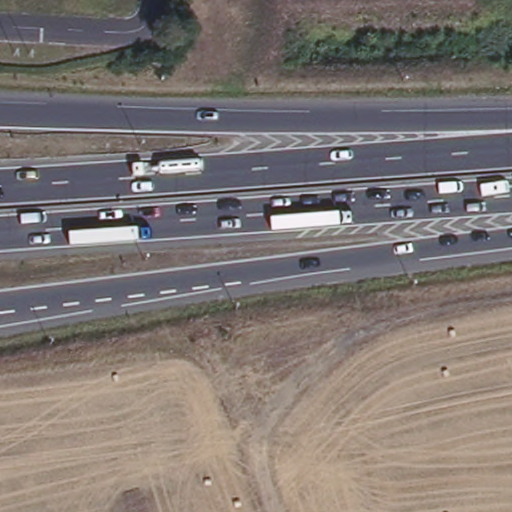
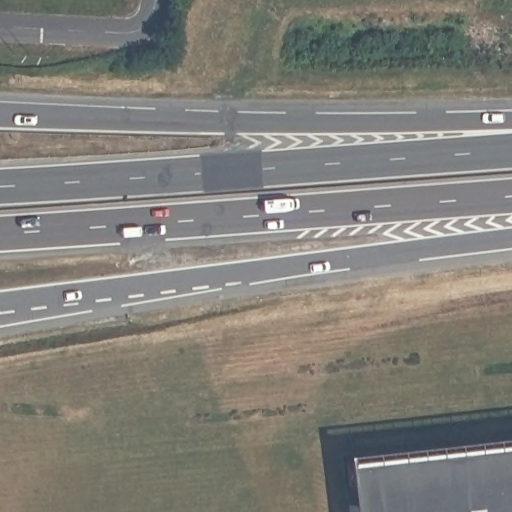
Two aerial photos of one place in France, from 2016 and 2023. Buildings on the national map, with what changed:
new [(348,461),(512,445),(512,512),(351,512),(348,461)]

